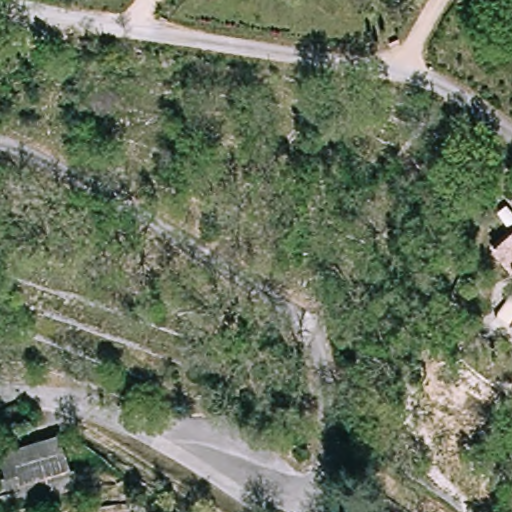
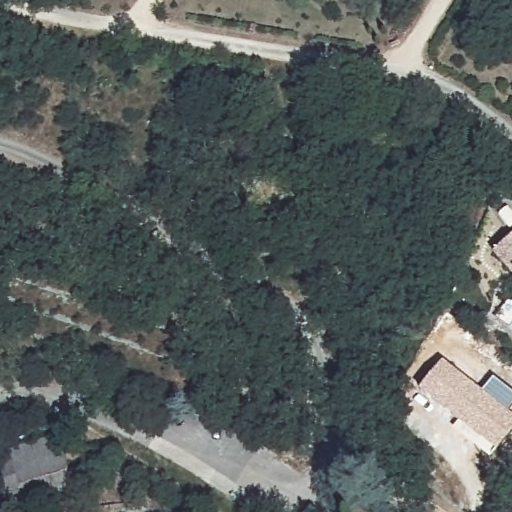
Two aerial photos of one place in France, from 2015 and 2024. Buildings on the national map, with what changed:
unchanged [(497,254),(512,240),(512,271),(497,254)]
new [(420,392),(442,360),(483,391),(493,377),(512,391),(512,410),(510,412),(512,414),(512,428),(494,451),(420,392)]
unchanged [(75,489),(0,507),(0,484),(8,481),(1,453),(53,435),(75,489)]

